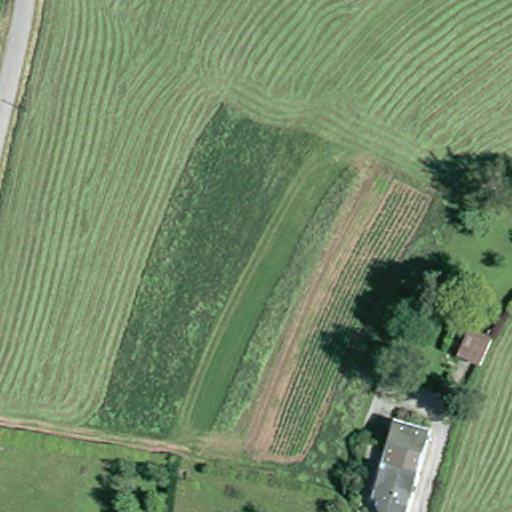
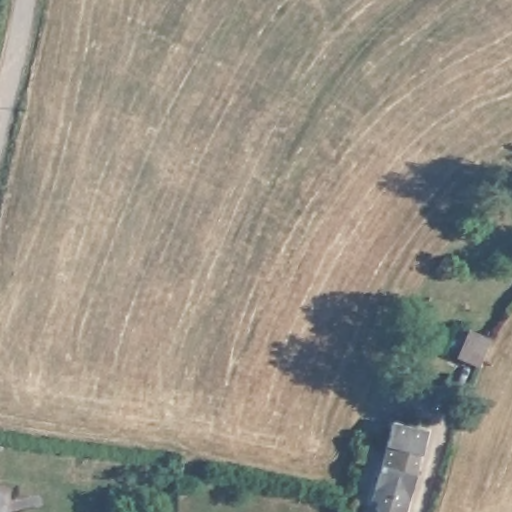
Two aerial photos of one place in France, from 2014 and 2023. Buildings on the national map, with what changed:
unchanged [(439,436),(414,512),(381,512),(383,508),(376,506),(401,430),(421,436),(423,430),(439,436)]

